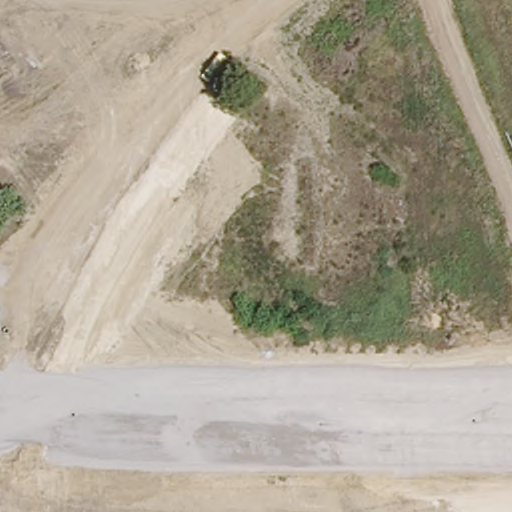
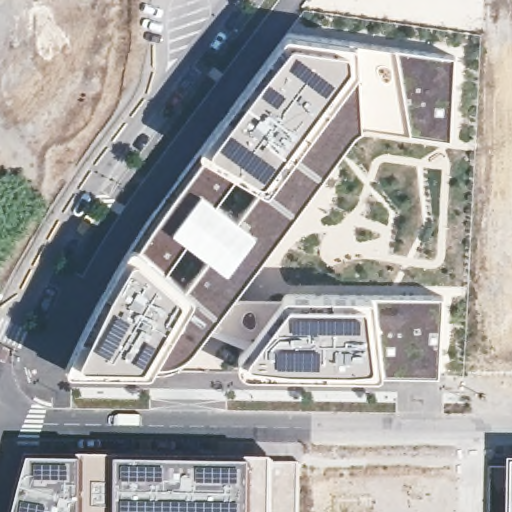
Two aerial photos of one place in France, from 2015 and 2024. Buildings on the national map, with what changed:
new [(384,369),(379,374),(372,375),(254,372),(243,371),(240,361),(240,354),(258,331),(214,321),(186,354),(157,361),(152,372),(68,367),(88,323),(132,245),(203,147),(291,33),(358,43),(457,58),(453,139),(365,126),(358,130),(237,294),(286,294),(373,296),(442,296),(440,375),(384,369)]
new [(300,463),(299,512),(20,512),(33,458),(275,462),(300,463)]

